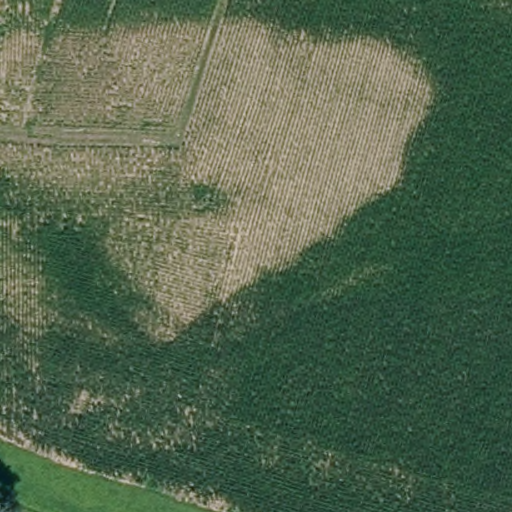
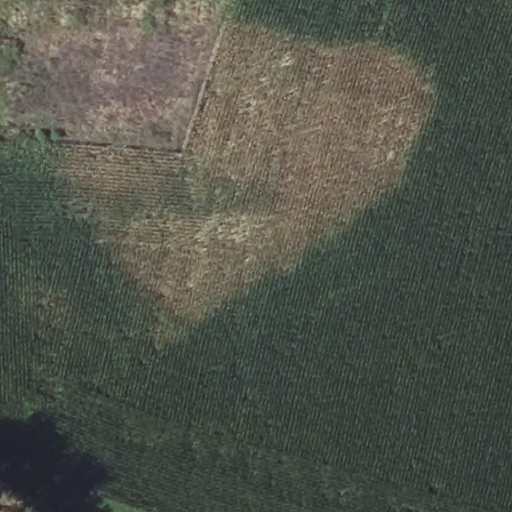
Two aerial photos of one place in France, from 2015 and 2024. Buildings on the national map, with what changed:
[]

